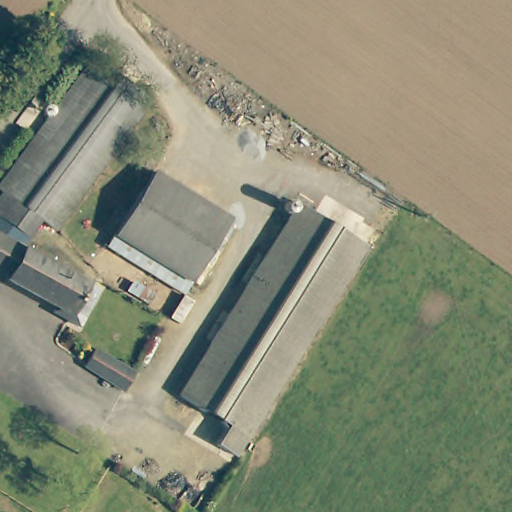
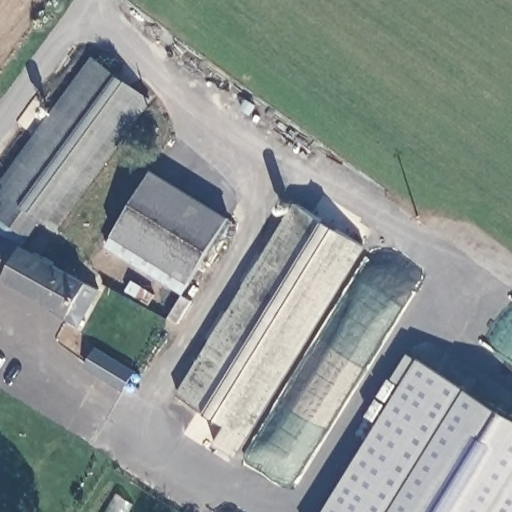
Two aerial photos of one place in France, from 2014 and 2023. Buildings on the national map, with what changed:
unchanged [(90,55),(148,97),(55,226),(41,216),(2,188),(0,187),(0,176),(90,55)]
unchanged [(153,168),(228,213),(188,277),(115,231),(153,168)]
unchanged [(21,244),(0,233),(0,190),(2,188),(41,216),(21,244)]
unchanged [(233,457),(213,444),(226,425),(182,395),(302,204),(368,246),(233,457)]
unchanged [(21,244),(83,279),(78,290),(89,297),(75,322),(63,315),(66,310),(2,275),(3,274),(0,272),(0,233),(21,244)]
unchanged [(95,344),(136,367),(124,387),(84,363),(95,344)]
new [(512,512),(324,512),(405,382),(395,378),(410,352),(422,358),(512,414),(512,512)]

